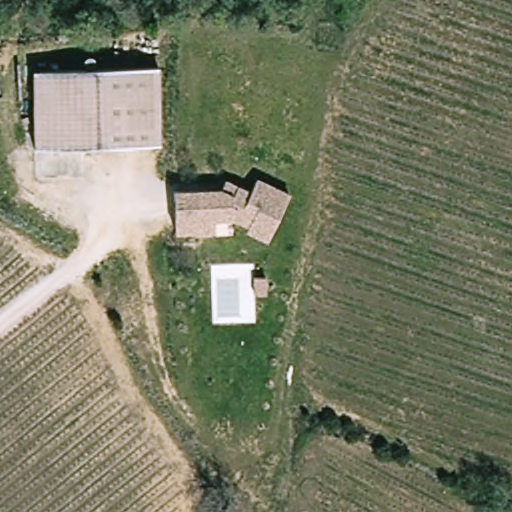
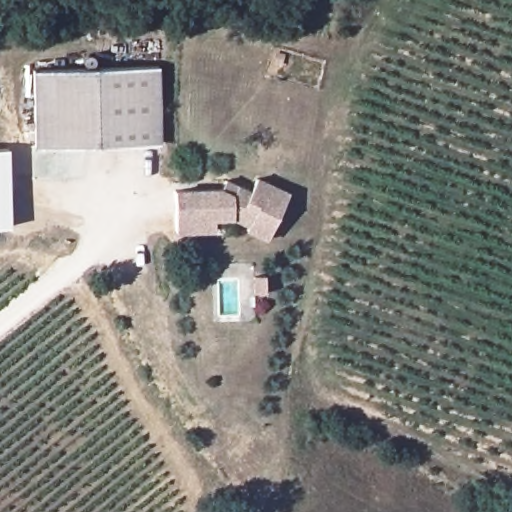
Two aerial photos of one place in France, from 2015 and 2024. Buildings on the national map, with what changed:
unchanged [(141,145),(40,145),(40,67),(115,67),(165,67),(165,117),(166,145),(141,145)]
new [(0,225),(0,147),(8,147),(9,225),(0,225)]
unchanged [(206,234),(186,236),(181,196),(226,190),(230,180),(266,193),(271,179),(295,187),(281,226),(278,235),(256,227),(258,224),(258,222),(242,217),(229,219),(223,219),(225,231),(206,234)]

